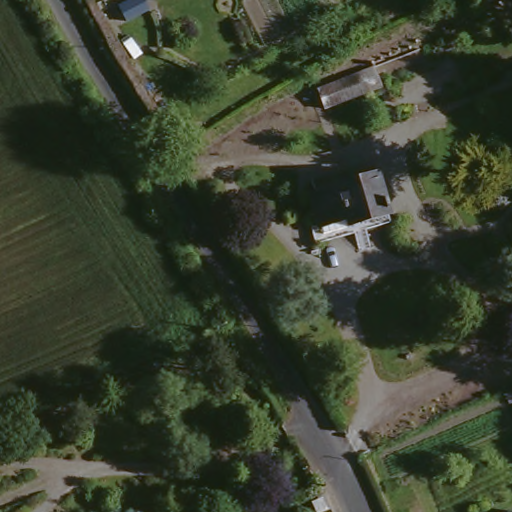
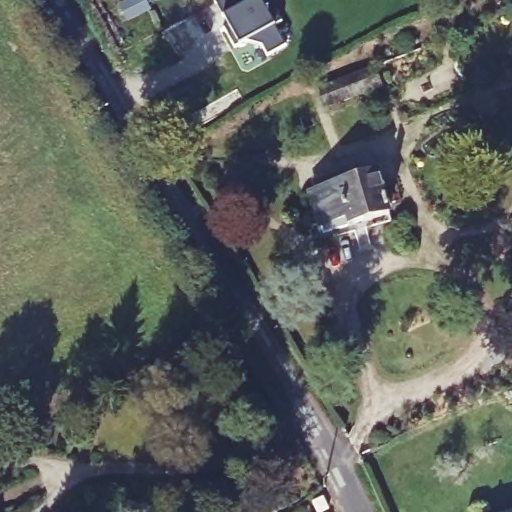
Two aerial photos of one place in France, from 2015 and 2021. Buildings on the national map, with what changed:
new [(267,4),(273,0),(284,16),(278,21),(291,40),(273,52),(266,43),(251,39),(239,46),(228,25),(236,20),(231,13),(228,16),(218,0),(264,0),(267,4)]
unchanged [(371,169),(386,216),(345,228),(343,221),(315,229),(303,190),(371,169)]

